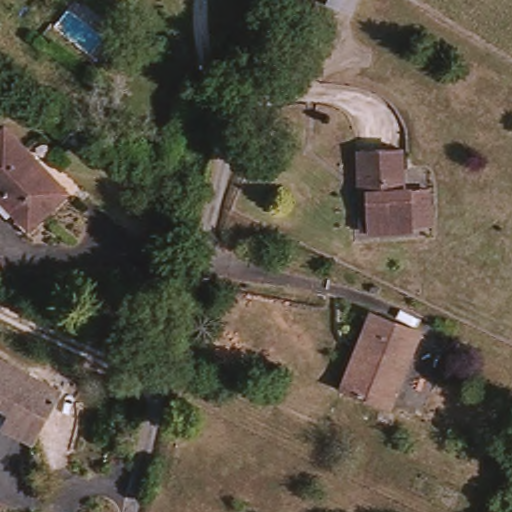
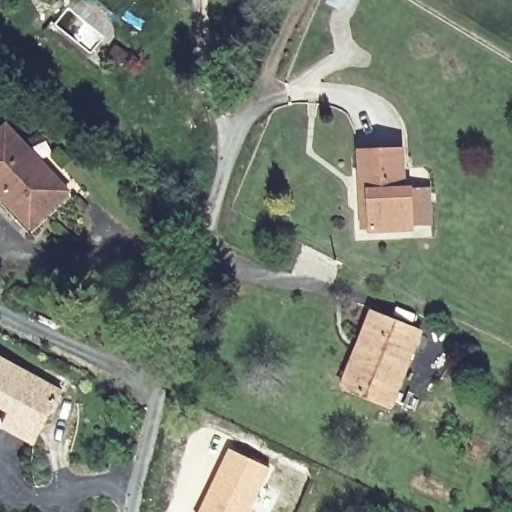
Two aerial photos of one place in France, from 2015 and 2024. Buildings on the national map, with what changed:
unchanged [(66,191),(29,227),(0,196),(0,133),(6,128),(66,191)]
unchanged [(432,222),(412,223),(412,228),(371,231),(370,226),(363,226),(361,154),(401,152),(403,193),(428,191),(432,222)]
unchanged [(362,337),(371,315),(417,333),(390,405),(351,388),(343,385),(362,337)]
unchanged [(2,426),(10,412),(0,406),(0,359),(62,393),(42,429),(34,443),(2,426)]
new [(270,468),(249,512),(197,512),(227,447),(270,468)]

